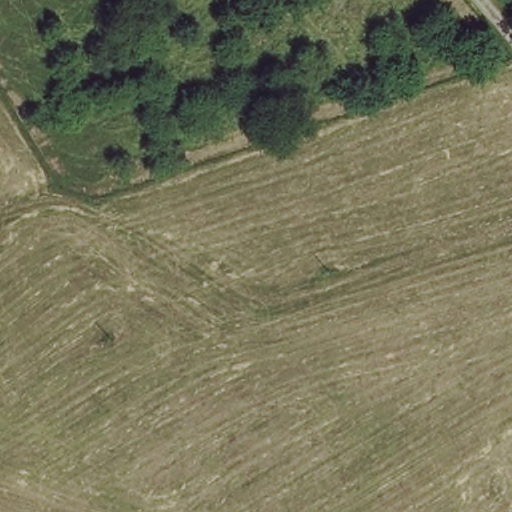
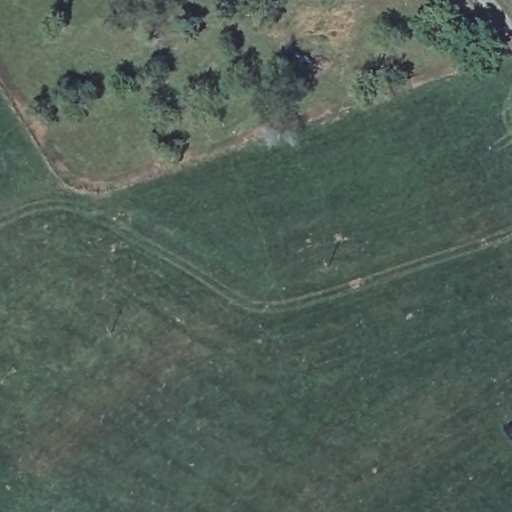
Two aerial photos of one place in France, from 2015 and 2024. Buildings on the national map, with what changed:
[]

